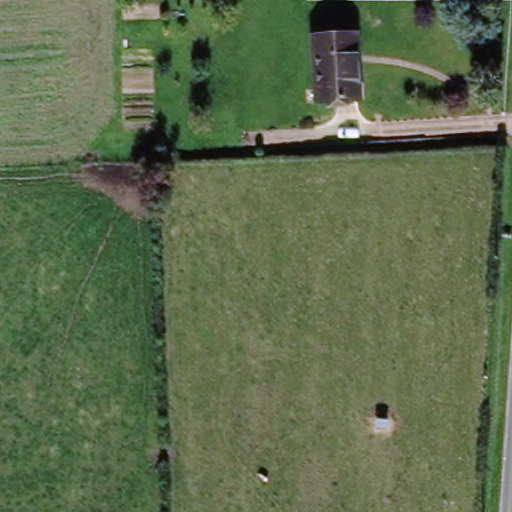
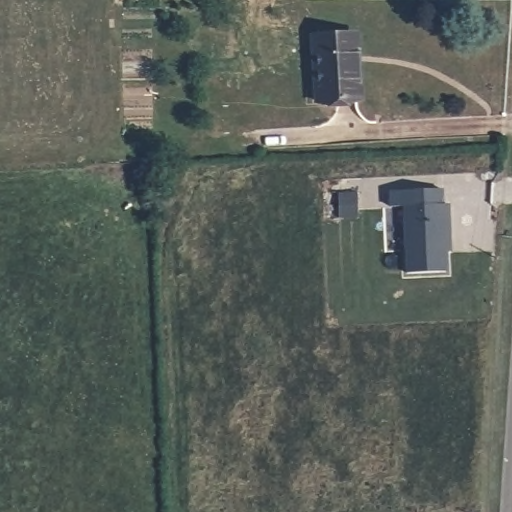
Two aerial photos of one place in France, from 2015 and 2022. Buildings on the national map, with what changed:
unchanged [(366,101),(316,106),(310,37),(360,33),(366,101)]
new [(450,203),(453,252),(447,252),(449,272),(405,274),(402,208),(450,203)]

